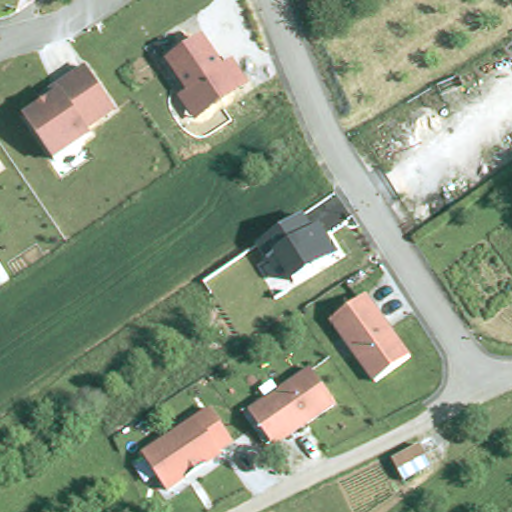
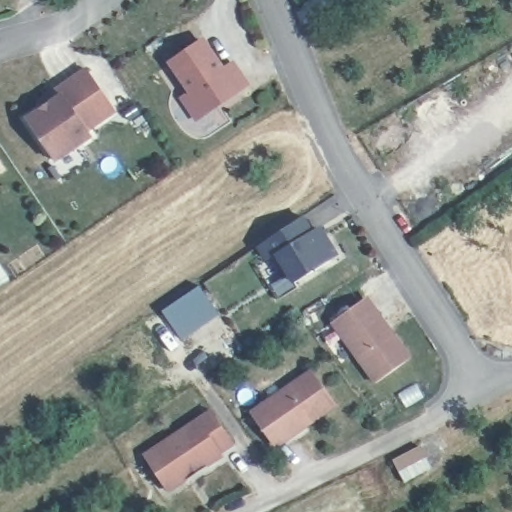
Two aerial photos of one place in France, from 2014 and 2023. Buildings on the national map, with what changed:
unchanged [(180,97),(187,90),(170,61),(204,37),(227,65),(233,59),(249,84),(197,120),(180,97)]
unchanged [(118,111),(88,130),(93,136),(55,162),(28,121),(65,97),(63,90),(90,71),(118,111)]
unchanged [(0,171),(0,163),(3,169),(0,171)]
unchanged [(276,254),(265,261),(258,246),(302,217),(311,231),(319,226),(336,255),(294,283),(276,254)]
new [(200,285),(220,315),(181,341),(161,312),(200,285)]
unchanged [(334,321),(369,296),(411,359),(376,383),(334,321)]
unchanged [(276,448),(276,447),(248,411),(311,368),(338,406),(276,448)]
unchanged [(168,491),(142,453),(209,407),(233,445),(221,453),(223,457),(168,491)]
unchanged [(439,468),(404,484),(394,460),(428,446),(439,468)]

